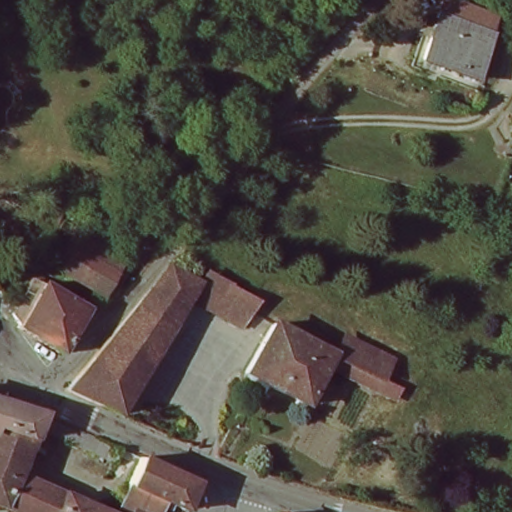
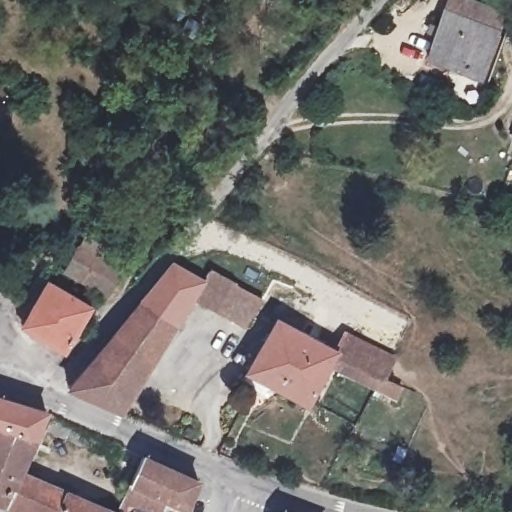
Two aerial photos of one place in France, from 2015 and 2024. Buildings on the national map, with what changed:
unchanged [(446,10),(500,28),(478,87),(427,69),(446,10)]
unchanged [(88,241),(134,268),(106,311),(61,285),(88,241)]
unchanged [(190,299),(141,380),(120,419),(72,397),(86,380),(118,338),(173,270),(200,284),(207,270),(239,288),(231,301),(223,317),(190,299)]
unchanged [(42,285),(88,310),(66,356),(21,334),(42,285)]
unchanged [(307,410),(257,383),(248,378),(276,327),(332,360),(307,410)]
unchanged [(345,332),(396,360),(383,387),(332,360),(345,332)]
unchanged [(50,420),(43,434),(8,426),(0,441),(0,405),(50,420)]
unchanged [(43,434),(25,483),(93,512),(15,512),(0,505),(0,441),(8,426),(43,434)]
unchanged [(142,461),(200,488),(188,512),(162,501),(158,512),(127,512),(123,511),(142,461)]

